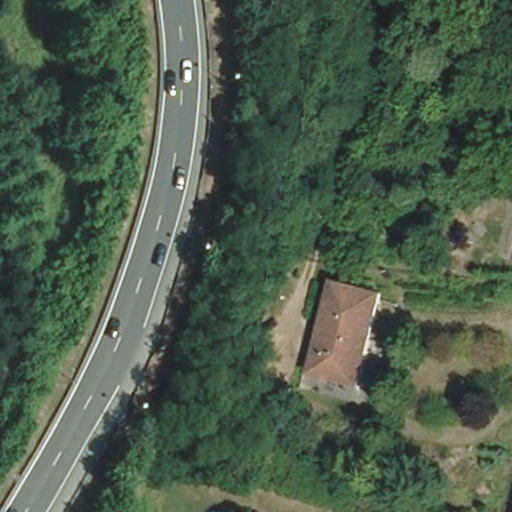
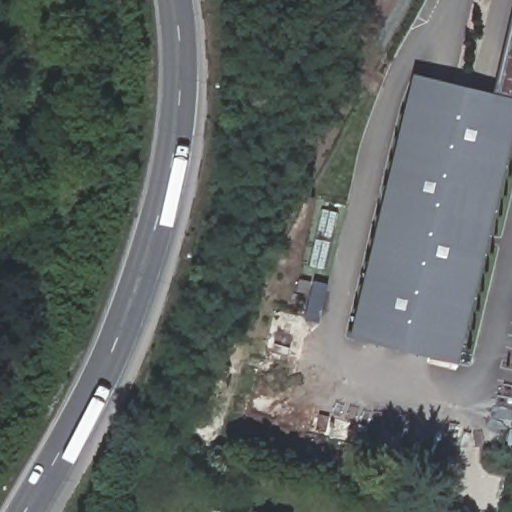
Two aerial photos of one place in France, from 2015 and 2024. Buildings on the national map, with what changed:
new [(459,364),(404,351),(350,338),(414,73),(468,86),(494,93),(512,18),(512,142),(459,364)]
demolished [(382,293),(359,382),(311,370),(333,282),(382,293)]

